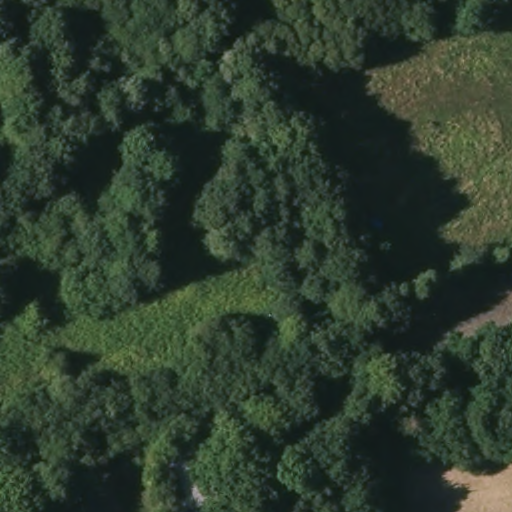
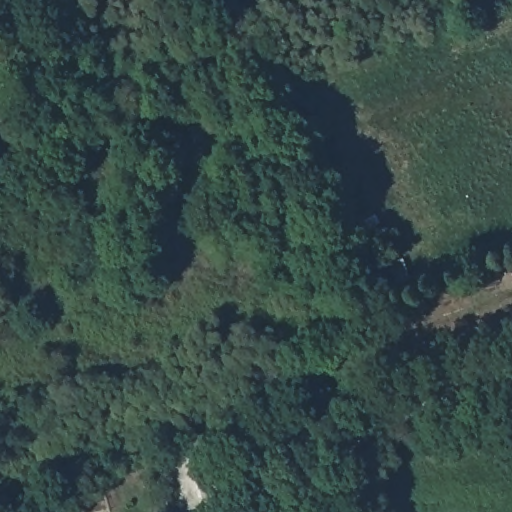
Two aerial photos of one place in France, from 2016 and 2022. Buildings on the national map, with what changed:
unchanged [(204,442),(223,501),(215,504),(218,512),(174,512),(156,455),(204,442)]

